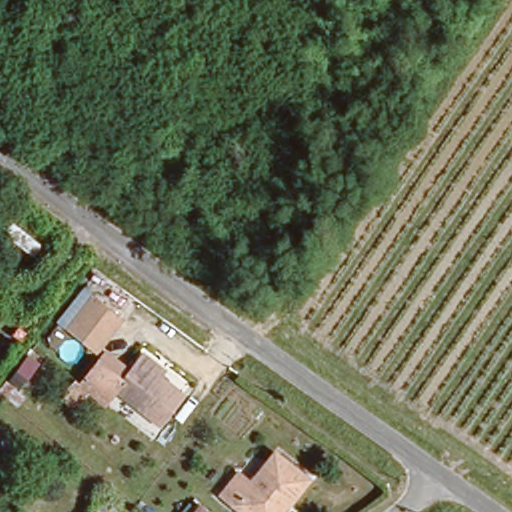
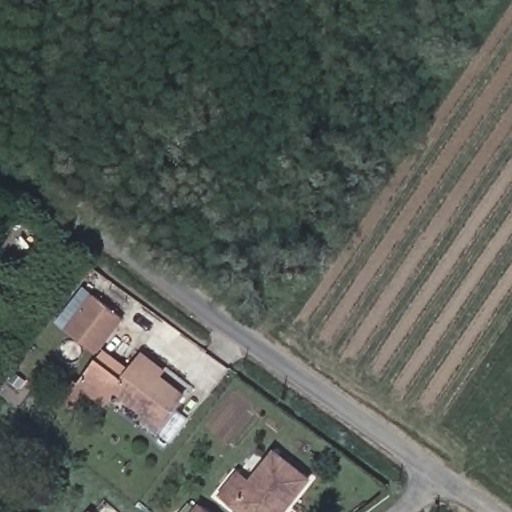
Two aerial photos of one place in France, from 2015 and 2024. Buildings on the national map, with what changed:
unchanged [(91,293),(120,315),(92,351),(65,328),(91,293)]
unchanged [(157,424),(107,383),(102,388),(83,373),(101,349),(127,369),(136,358),(142,351),(165,369),(160,377),(182,393),(157,424)]
unchanged [(307,479),(287,508),(281,504),(274,512),(245,512),(219,492),(236,470),(251,479),(272,452),(307,479)]
unchanged [(197,504),(208,512),(191,512),(197,504)]

